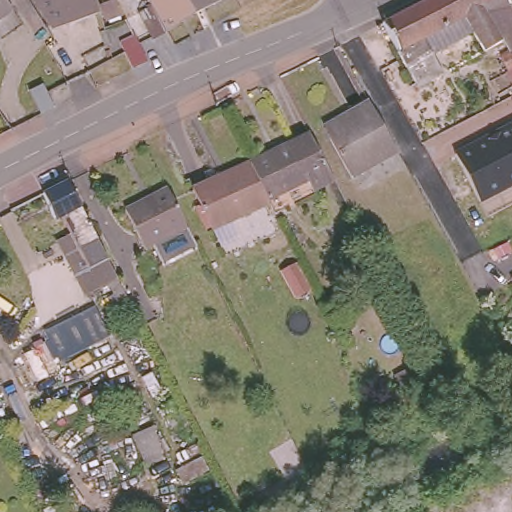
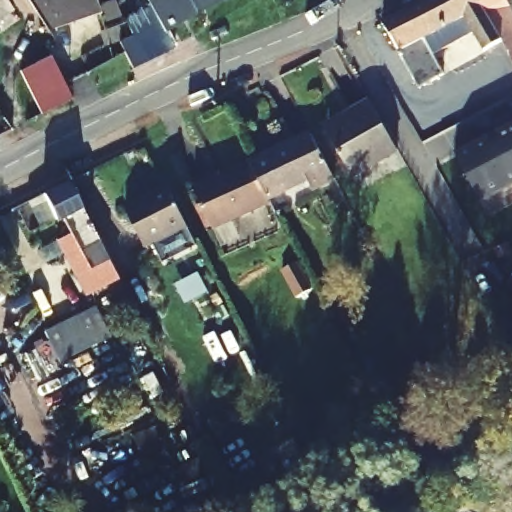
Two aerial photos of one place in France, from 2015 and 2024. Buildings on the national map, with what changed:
unchanged [(12,6),(0,16),(0,0),(7,0),(12,6)]
unchanged [(54,29),(32,2),(40,0),(94,0),(100,15),(100,16),(54,29)]
unchanged [(123,50),(120,42),(118,40),(132,31),(117,37),(105,42),(100,28),(103,27),(114,22),(125,18),(130,15),(152,4),(149,0),(216,0),(183,17),(160,31),(155,33),(147,38),(138,42),(147,57),(131,65),(123,50)]
unchanged [(442,73),(444,76),(430,83),(426,78),(413,83),(380,22),(423,0),(477,0),(502,45),(487,52),(485,50),(478,38),(435,60),(442,73)]
unchanged [(512,12),(512,46),(505,50),(502,45),(477,0),(508,0),(507,1),(512,12)]
new [(20,71),(50,55),(72,98),(42,114),(20,71)]
demolished [(55,89),(62,103),(48,110),(41,96),(37,87),(50,80),(55,89)]
unchanged [(318,127),(365,101),(387,138),(392,149),(345,176),(318,127)]
unchanged [(448,148),(512,117),(512,185),(477,202),(448,148)]
unchanged [(333,178),(310,189),(307,181),(268,201),(267,199),(250,163),(308,130),(333,178)]
unchanged [(213,227),(192,186),(247,159),(250,163),(267,199),(213,227)]
unchanged [(98,288),(80,253),(85,250),(66,215),(57,218),(45,193),(68,181),(118,279),(98,288)]
unchanged [(191,224),(147,245),(126,203),(170,181),(191,224)]
unchanged [(512,271),(512,288),(504,275),(512,271)]
unchanged [(42,326),(96,303),(109,336),(57,362),(42,326)]
new [(133,436),(152,428),(163,452),(145,461),(133,436)]
new [(180,470),(204,458),(210,470),(187,483),(180,470)]

